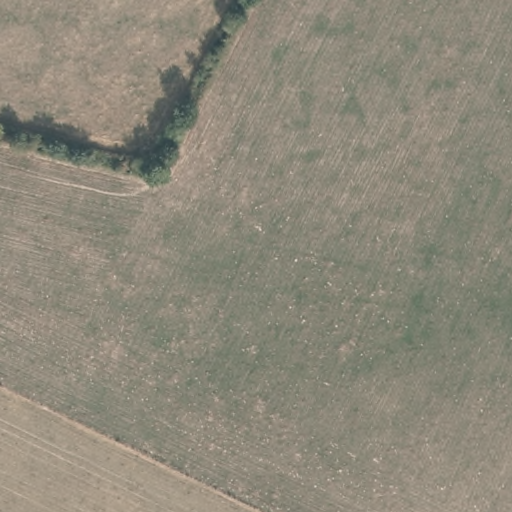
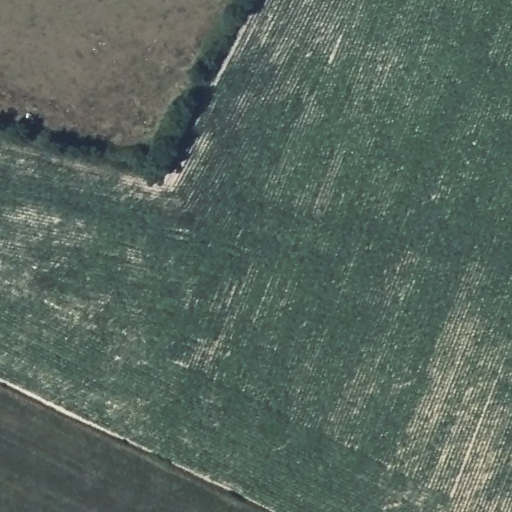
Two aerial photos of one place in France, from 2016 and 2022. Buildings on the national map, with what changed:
[]

